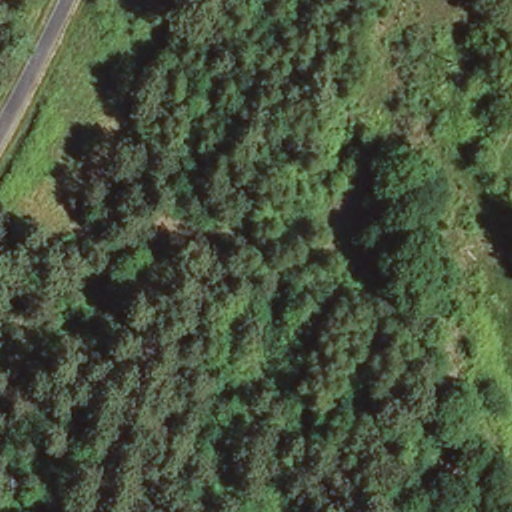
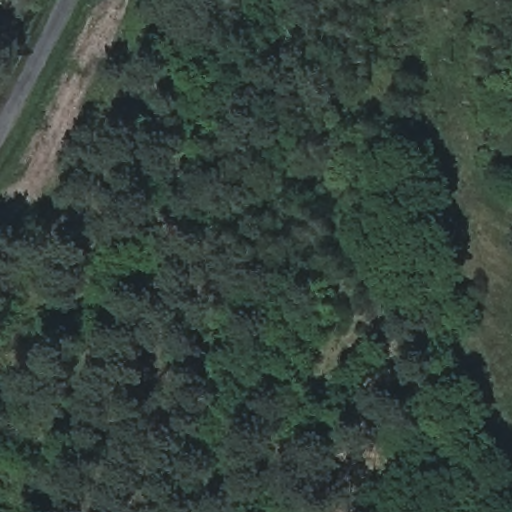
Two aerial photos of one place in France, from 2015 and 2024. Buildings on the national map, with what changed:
[]

